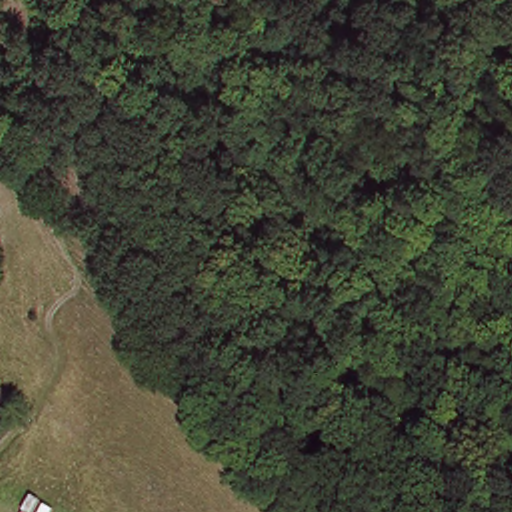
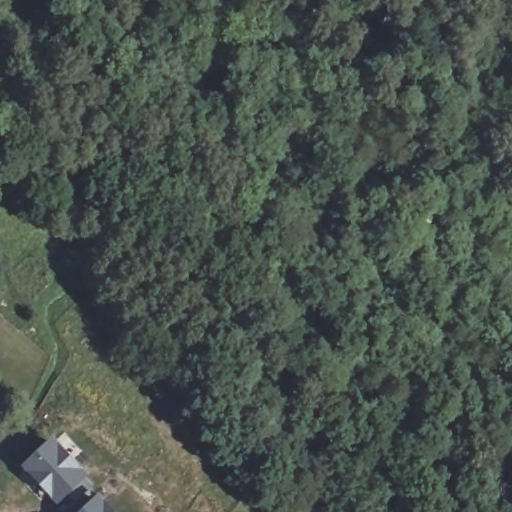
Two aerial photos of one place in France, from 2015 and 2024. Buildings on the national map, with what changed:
new [(59,506),(22,468),(55,437),(91,477),(59,506)]
new [(116,512),(84,512),(100,495),(116,512)]

